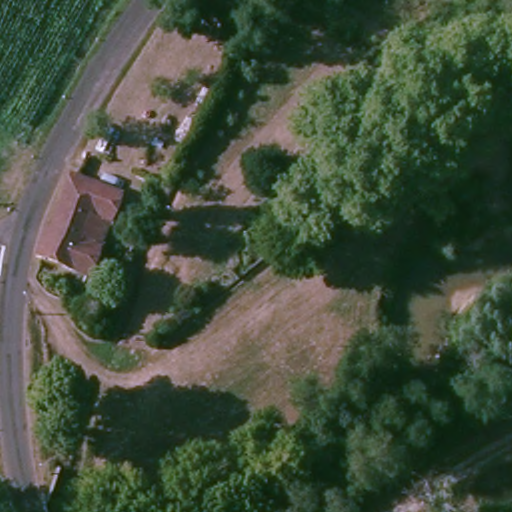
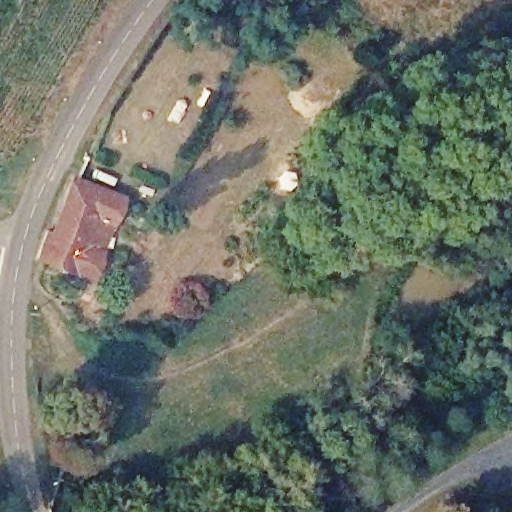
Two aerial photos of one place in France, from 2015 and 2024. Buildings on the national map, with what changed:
unchanged [(98,280),(39,256),(50,227),(55,228),(76,173),(132,189),(98,280)]

